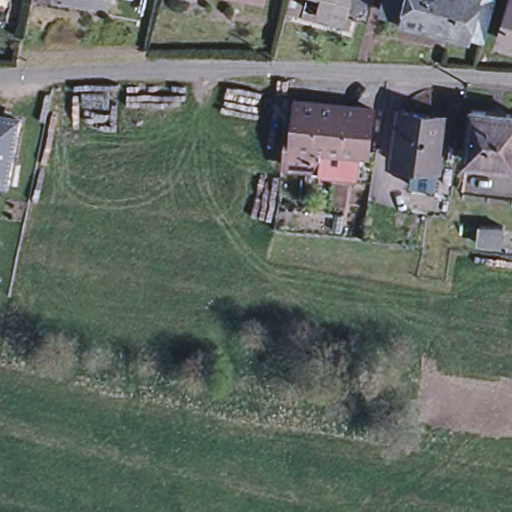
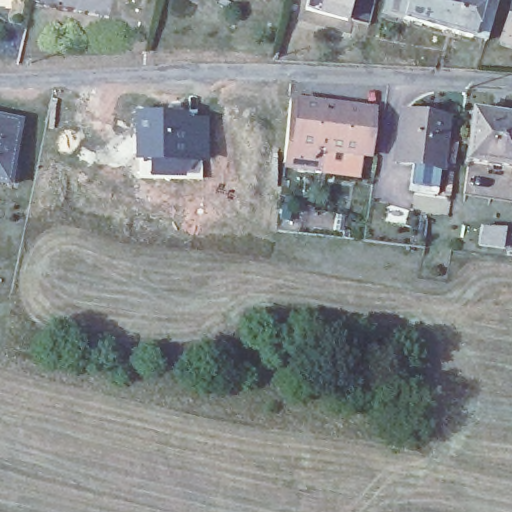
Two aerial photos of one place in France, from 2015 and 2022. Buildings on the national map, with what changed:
unchanged [(304,8),(306,0),(350,0),(350,2),(345,19),(304,8)]
unchanged [(434,26),(401,17),(379,12),(382,0),(441,0),(434,26)]
unchanged [(485,39),(470,35),(434,26),(441,0),(495,0),(485,39)]
unchanged [(511,0),(512,0),(512,44),(499,40),(511,0)]
unchanged [(337,100),(376,105),(370,149),(317,142),(315,162),(285,158),(291,95),(298,95),(337,100)]
new [(135,107),(180,108),(180,114),(180,119),(201,119),(201,158),(200,158),(180,158),(180,173),(162,173),(162,158),(136,158),(135,158),(135,114),(135,107)]
unchanged [(464,159),(471,110),(512,115),(512,165),(464,159)]
unchanged [(449,118),(440,188),(413,184),(415,163),(397,160),(403,112),(449,118)]
unchanged [(16,120),(6,180),(0,179),(0,117),(16,120)]
new [(136,158),(162,158),(162,173),(180,173),(180,158),(200,158),(200,178),(136,178),(136,158)]
unchanged [(503,226),(500,244),(476,241),(478,223),(503,226)]

